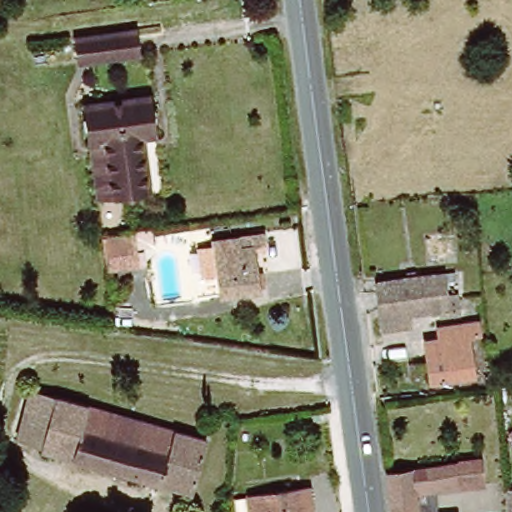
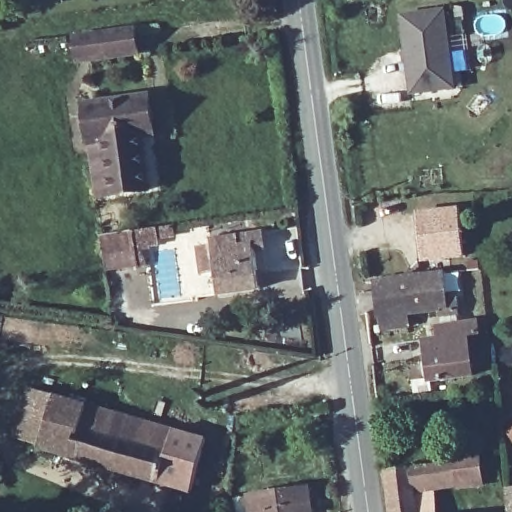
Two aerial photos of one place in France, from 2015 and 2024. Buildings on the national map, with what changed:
new [(440,11),(450,90),(407,95),(398,16),(440,11)]
unchanged [(132,55),(74,64),(71,38),(130,30),(132,55)]
unchanged [(89,141),(84,101),(106,99),(147,94),(149,107),(152,132),(142,134),(149,189),(110,194),(95,195),(89,141)]
new [(455,209),(460,256),(418,261),(413,215),(455,209)]
unchanged [(105,240),(136,236),(139,257),(108,261),(105,240)]
unchanged [(244,238),(245,246),(256,245),(262,290),(221,295),(218,271),(207,272),(204,249),(215,247),(214,242),(244,238)]
unchanged [(461,315),(441,316),(441,311),(411,314),(412,326),(384,330),(379,280),(446,272),(450,310),(460,309),(461,315)]
unchanged [(475,375),(432,380),(427,340),(428,340),(441,338),(441,337),(440,327),(452,325),(478,322),(480,332),(480,334),(470,335),(475,374),(475,375)]
unchanged [(192,493),(41,450),(42,447),(18,440),(34,392),(207,441),(192,493)]
unchanged [(333,472),(321,474),(320,462),(331,461),(333,472)]
unchanged [(473,463),(476,487),(410,496),(407,472),(473,463)]
unchanged [(407,472),(410,496),(413,512),(388,512),(383,475),(407,472)]
unchanged [(300,511),(301,512),(252,512),(250,492),(310,485),(312,510),(300,511)]
unchanged [(512,491),(512,512),(508,512),(505,492),(512,491)]

